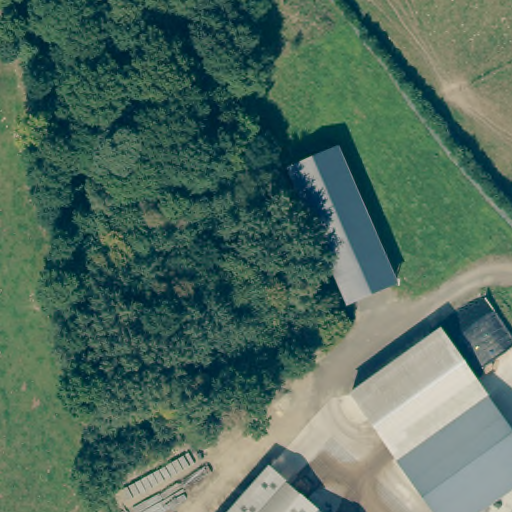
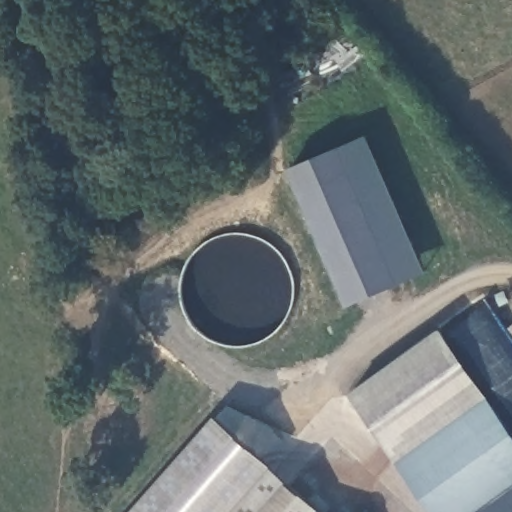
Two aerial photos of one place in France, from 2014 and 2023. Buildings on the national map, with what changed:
new [(367,136),(426,272),(397,284),(339,147),(367,136)]
unchanged [(288,168),(339,147),(397,284),(347,307),(288,168)]
unchanged [(397,461),(349,394),(436,331),(484,397),(397,461)]
unchanged [(512,435),(512,489),(480,512),(435,512),(397,461),(484,397),(512,435)]
new [(268,468),(230,512),(132,512),(214,419),(268,468)]
unchanged [(230,512),(268,468),(317,510),(316,512),(230,512)]
new [(512,512),(480,512),(512,489),(512,512)]
unchanged [(320,512),(316,512),(317,510),(320,512)]

